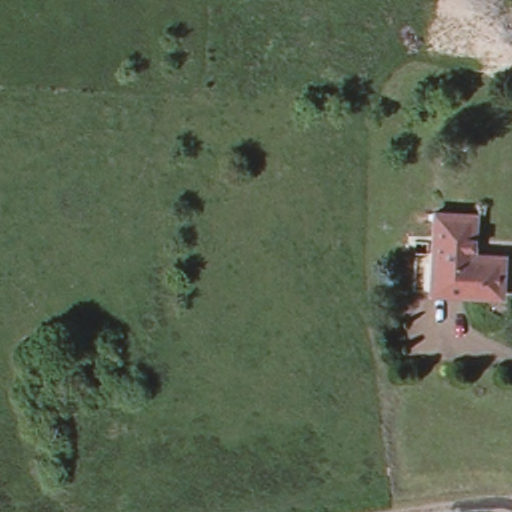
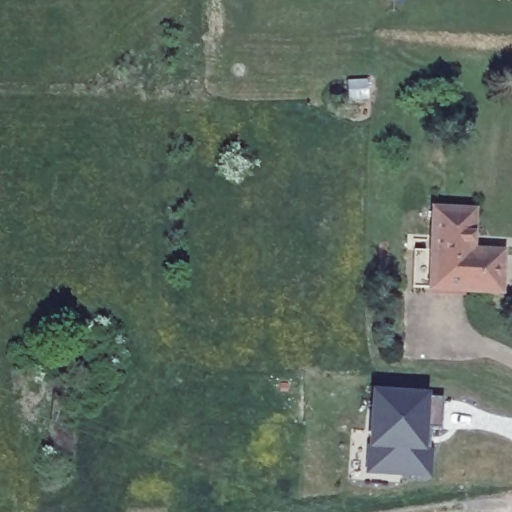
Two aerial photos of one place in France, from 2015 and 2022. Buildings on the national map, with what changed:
unchanged [(472,212),(470,251),(501,254),(498,293),(427,290),(432,209),(472,212)]
new [(372,393),(440,398),(438,430),(420,429),(418,446),(427,447),(425,475),(377,471),(365,471),(367,452),(372,393)]

